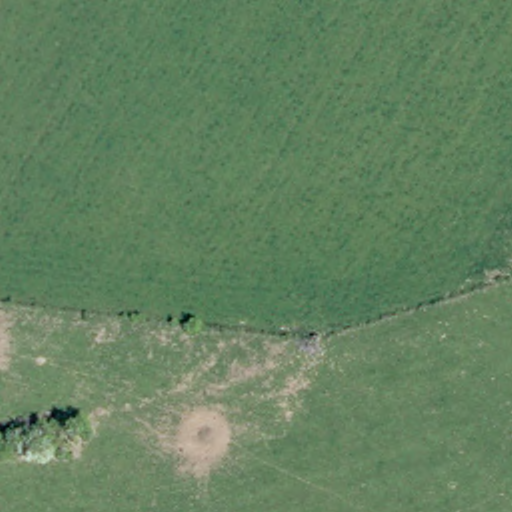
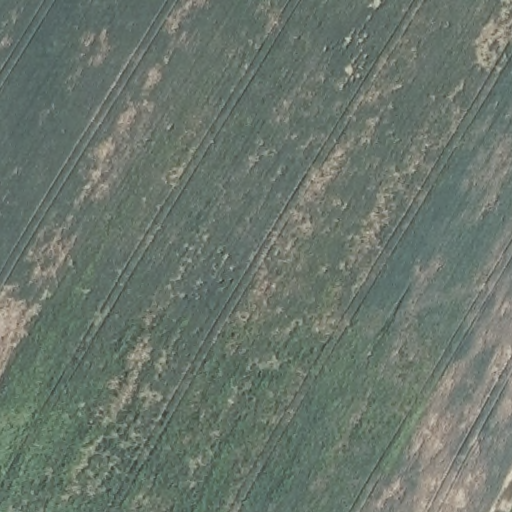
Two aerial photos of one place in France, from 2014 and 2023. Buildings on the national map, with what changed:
[]

